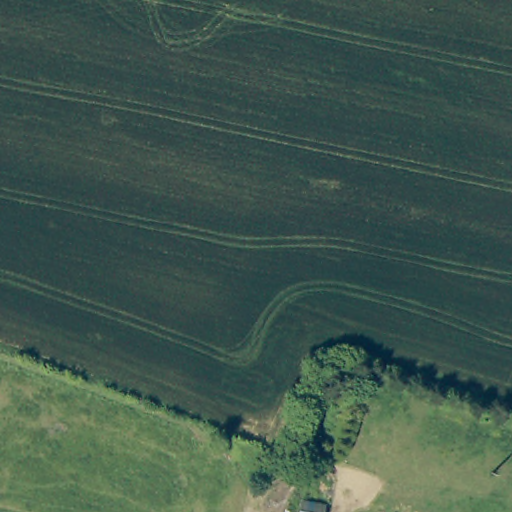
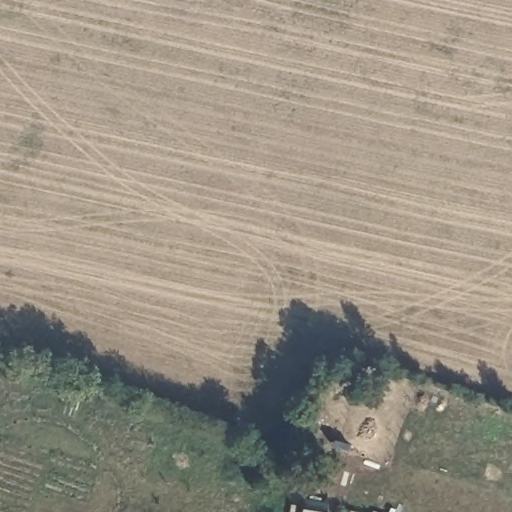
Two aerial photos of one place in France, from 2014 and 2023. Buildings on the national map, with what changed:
unchanged [(323,512),(301,512),(302,502),(324,506),(323,512)]

